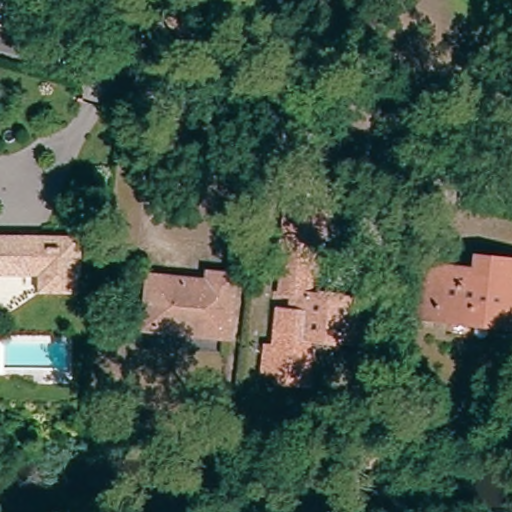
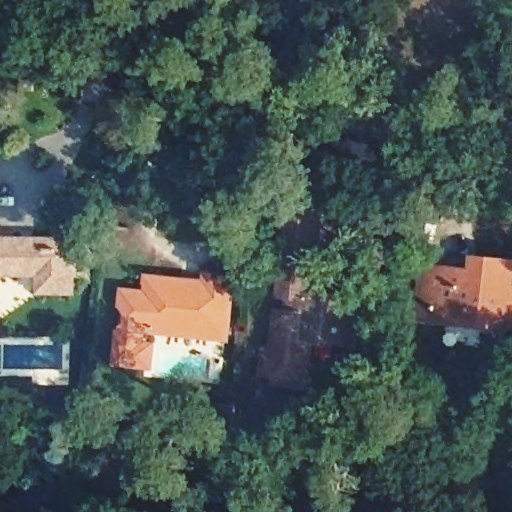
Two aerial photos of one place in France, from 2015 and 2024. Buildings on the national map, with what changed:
new [(7,119),(6,164),(0,164),(0,119),(7,119)]
unchanged [(47,297),(48,279),(0,278),(0,242),(85,244),(84,280),(84,298),(47,297)]
unchanged [(422,267),(475,273),(476,260),(512,263),(512,329),(417,319),(422,267)]
unchanged [(206,284),(207,275),(234,278),(227,340),(142,331),(148,277),(206,284)]
new [(155,371),(114,366),(122,286),(146,289),(142,331),(148,331),(147,341),(157,342),(155,371)]
unchanged [(293,341),(299,299),(349,307),(345,331),(354,333),(352,350),(293,341)]
unchanged [(234,445),(213,443),(218,403),(239,405),(234,445)]

